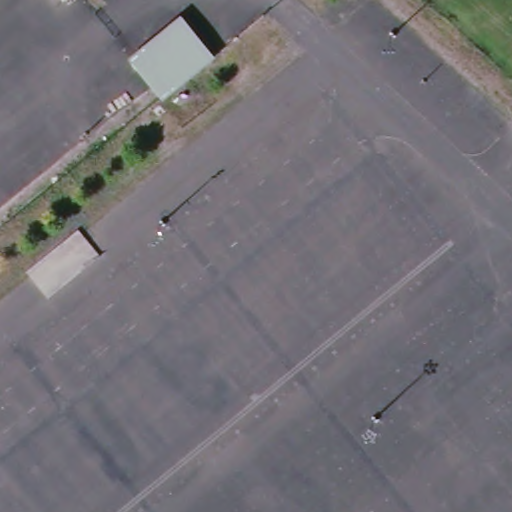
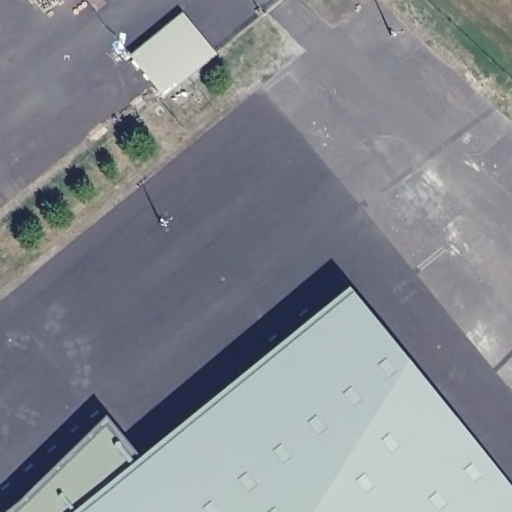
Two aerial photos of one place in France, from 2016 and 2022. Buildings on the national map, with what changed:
unchanged [(132,57),(170,26),(179,19),(190,33),(199,44),(210,58),(202,66),(164,97),(132,57)]
new [(109,418),(144,459),(352,286),(512,487),(512,512),(3,512),(15,503),(109,418)]

